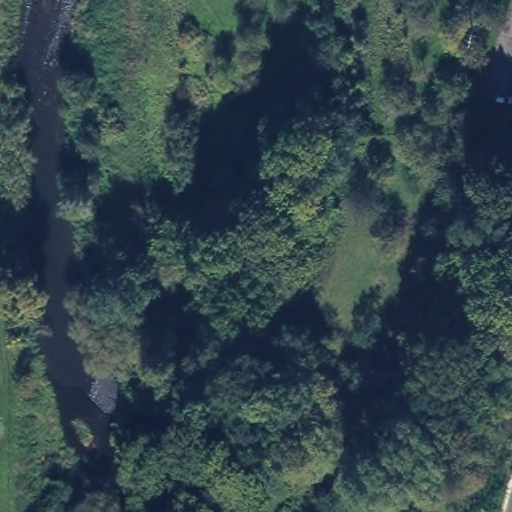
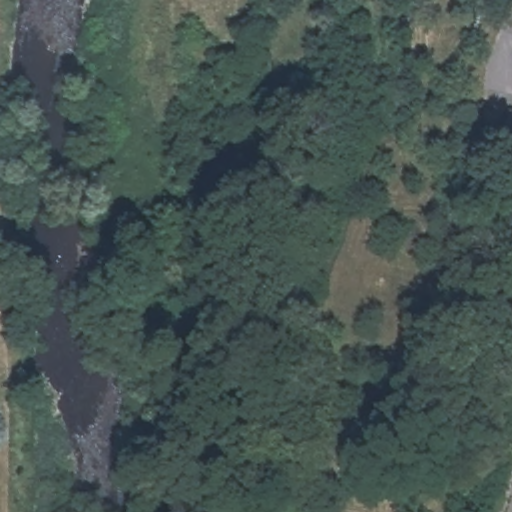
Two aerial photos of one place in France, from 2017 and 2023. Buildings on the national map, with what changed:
unchanged [(188,140),(210,139),(210,151),(189,153),(188,140)]

